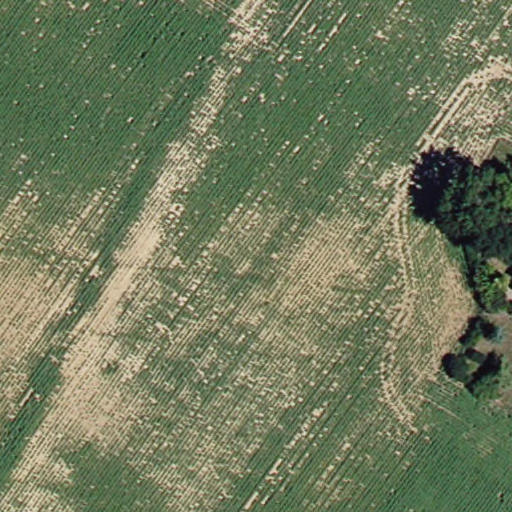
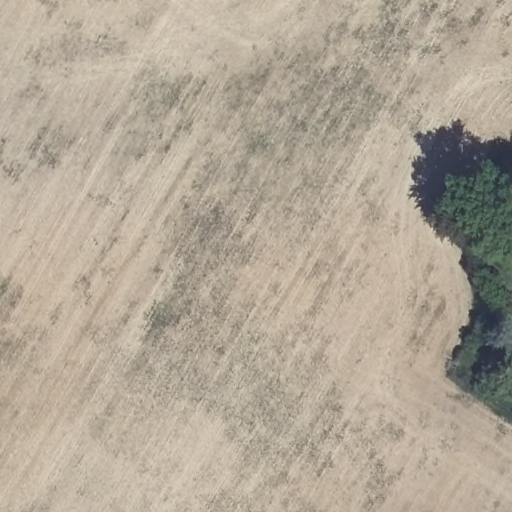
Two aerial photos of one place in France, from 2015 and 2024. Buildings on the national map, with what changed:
unchanged [(507,291),(512,283),(512,294),(507,291)]

